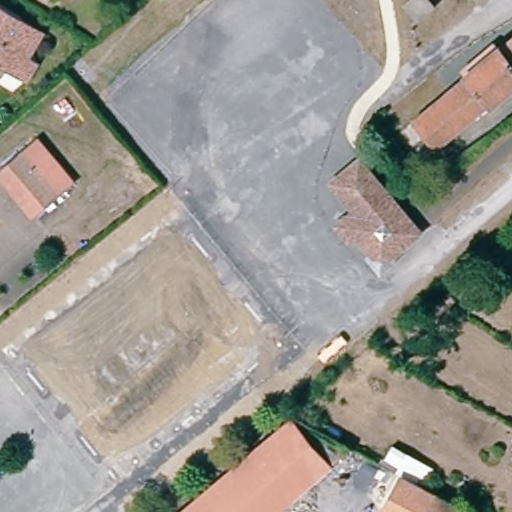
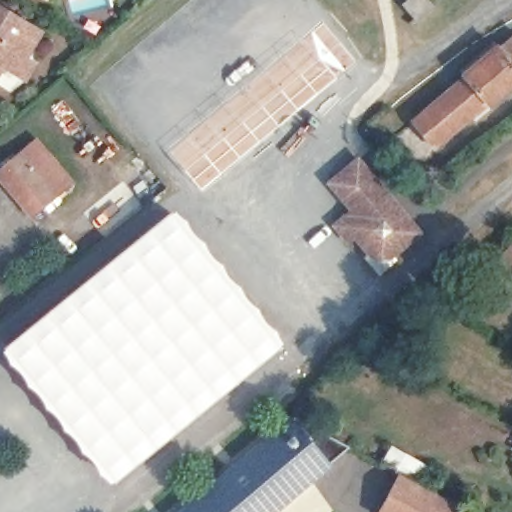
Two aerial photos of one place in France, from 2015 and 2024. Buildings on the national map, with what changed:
unchanged [(409,0),(423,0),(426,2),(416,9),(409,1),(409,0)]
unchanged [(12,72),(0,65),(0,5),(29,22),(38,27),(22,54),(31,60),(20,77),(12,72)]
new [(323,22),(355,61),(201,190),(168,151),(323,22)]
unchanged [(484,67),(483,65),(512,41),(512,91),(507,96),(504,92),(433,150),(413,124),(484,67)]
unchanged [(31,145),(64,187),(35,212),(0,169),(31,145)]
unchanged [(324,214),(343,199),(322,172),(349,149),(410,220),(383,244),(388,249),(370,264),(357,247),(364,239),(353,225),(348,228),(340,234),(324,214)]
new [(284,343),(111,483),(4,351),(173,212),(284,343)]
demolished [(512,267),(493,248),(512,233),(512,267)]
unchanged [(266,512),(177,512),(285,424),(338,452),(266,512)]
unchanged [(453,512),(378,512),(395,481),(453,512)]
demolished [(299,512),(278,512),(291,502),(299,512)]

